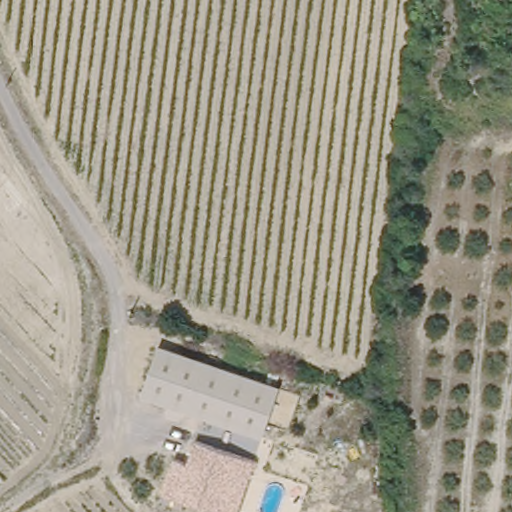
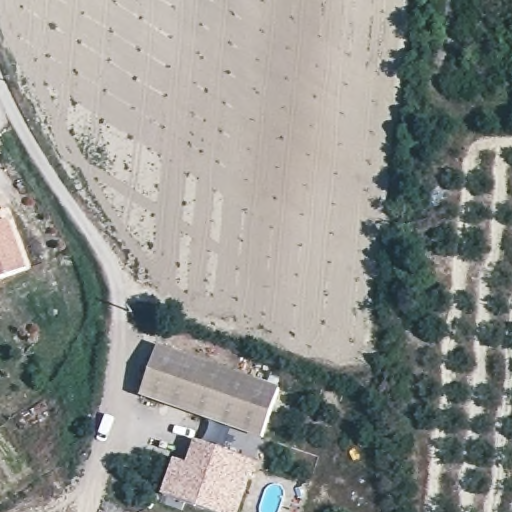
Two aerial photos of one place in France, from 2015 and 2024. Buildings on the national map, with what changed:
new [(12,219),(27,269),(0,277),(0,222),(12,219)]
unchanged [(164,341),(286,383),(269,432),(147,388),(164,341)]
unchanged [(183,457),(195,462),(204,438),(265,460),(247,512),(227,512),(171,492),(183,457)]

